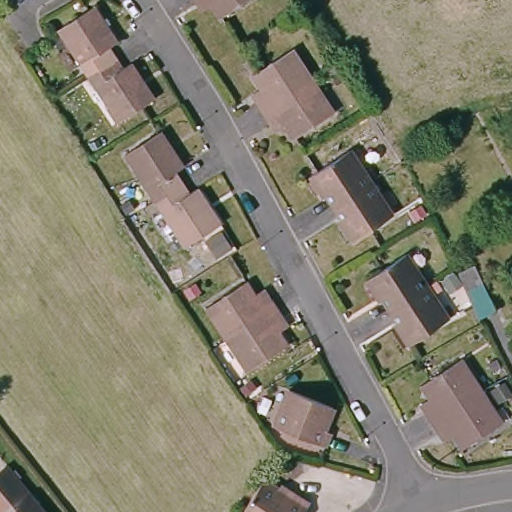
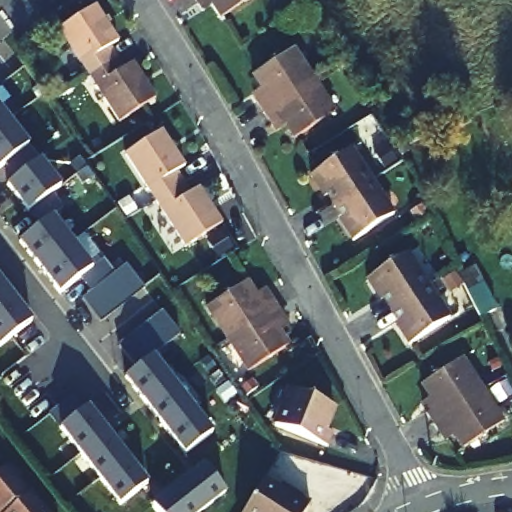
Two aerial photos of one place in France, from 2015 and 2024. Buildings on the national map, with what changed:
unchanged [(210,0),(241,0),(220,14),(210,0)]
unchanged [(85,78),(53,31),(88,8),(113,44),(106,48),(112,58),(85,78)]
unchanged [(265,116),(257,104),(268,96),(255,77),(295,51),(315,81),(265,116)]
unchanged [(112,58),(120,69),(126,64),(150,99),(115,122),(85,78),(112,58)]
unchanged [(315,81),(335,111),(296,138),(285,121),(273,128),(265,116),(315,81)]
new [(0,120),(0,107),(6,115),(0,120)]
new [(37,155),(15,173),(3,158),(0,161),(0,120),(6,115),(37,155)]
unchanged [(155,203),(123,156),(157,132),(182,167),(172,173),(180,185),(155,203)]
unchanged [(332,213),(312,182),(352,154),(373,187),(332,213)]
new [(27,207),(5,179),(37,155),(58,182),(50,188),(27,207)]
unchanged [(180,185),(187,193),(194,188),(219,223),(185,246),(155,203),(180,185)]
unchanged [(373,187),(395,218),(355,245),(332,213),(373,187)]
new [(50,211),(70,237),(38,262),(18,236),(37,221),(50,211)]
new [(70,237),(90,263),(58,288),(38,262),(70,237)]
unchanged [(390,317),(368,285),(407,258),(429,290),(390,317)]
new [(115,274),(125,265),(143,288),(100,322),(82,298),(90,292),(75,275),(90,263),(92,268),(103,259),(115,274)]
new [(0,298),(0,279),(9,291),(0,298)]
unchanged [(223,339),(202,308),(238,282),(252,301),(257,296),(266,309),(223,339)]
unchanged [(477,320),(470,307),(464,294),(482,285),(495,311),(477,320)]
unchanged [(429,290),(450,321),(410,347),(390,317),(429,290)]
new [(30,316),(0,340),(0,298),(9,291),(30,316)]
unchanged [(266,309),(275,321),(268,326),(281,344),(245,369),(223,339),(266,309)]
new [(182,334),(155,356),(152,353),(150,350),(135,363),(120,346),(162,311),(182,334)]
new [(150,350),(170,376),(144,397),(124,371),(135,363),(150,350)]
unchanged [(435,426),(425,413),(435,406),(424,389),(463,362),(485,392),(435,426)]
new [(170,376),(190,402),(164,423),(144,397),(170,376)]
unchanged [(485,392),(507,424),(467,451),(451,428),(441,435),(435,426),(485,392)]
unchanged [(339,404),(335,423),(325,420),(320,441),(275,432),(283,393),(339,404)]
new [(85,402),(105,427),(79,448),(59,423),(85,402)]
new [(190,402),(210,428),(184,448),(164,423),(190,402)]
new [(79,448),(105,427),(125,453),(99,473),(79,448)]
new [(99,473),(125,453),(145,478),(120,499),(99,473)]
new [(224,487),(198,507),(177,480),(203,460),(224,487)]
unchanged [(0,468),(4,464),(46,512),(0,512),(0,468)]
unchanged [(260,477),(287,493),(290,489),(307,500),(300,512),(239,512),(260,477)]
new [(198,507),(191,512),(160,512),(152,501),(177,480),(198,507)]

